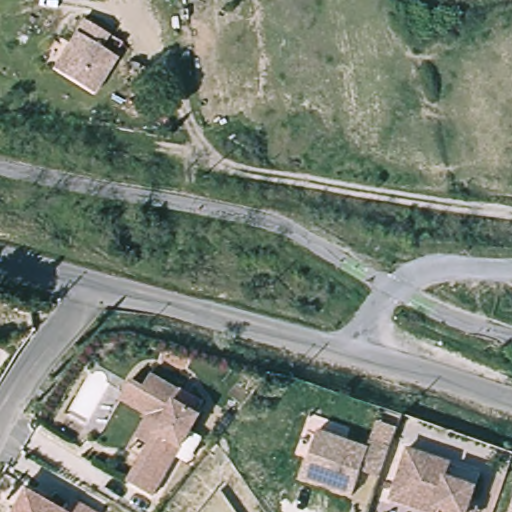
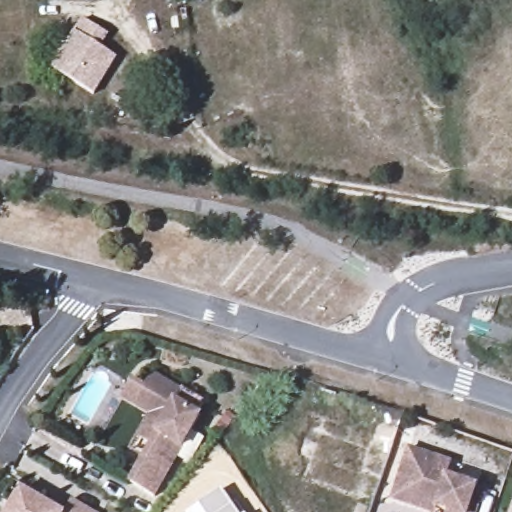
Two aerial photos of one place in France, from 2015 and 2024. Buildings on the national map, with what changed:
unchanged [(106,31),(98,45),(114,55),(94,91),(50,68),(63,46),(73,31),(81,17),(106,31)]
unchanged [(151,385),(158,372),(188,389),(181,399),(206,413),(160,494),(134,479),(148,454),(135,447),(156,413),(126,396),(130,390),(137,377),(151,385)]
unchanged [(353,498),(303,479),(319,434),(367,451),(371,442),(376,425),(398,431),(391,449),(381,480),(361,473),(353,498)]
unchanged [(436,512),(416,512),(391,504),(398,483),(408,454),(451,468),(446,482),(475,491),(467,512),(437,512),(436,512)]
new [(221,490),(233,507),(236,512),(204,512),(200,505),(221,490)]
unchanged [(16,491),(53,512),(4,512),(16,491)]
unchanged [(65,501),(86,512),(59,512),(65,501)]

